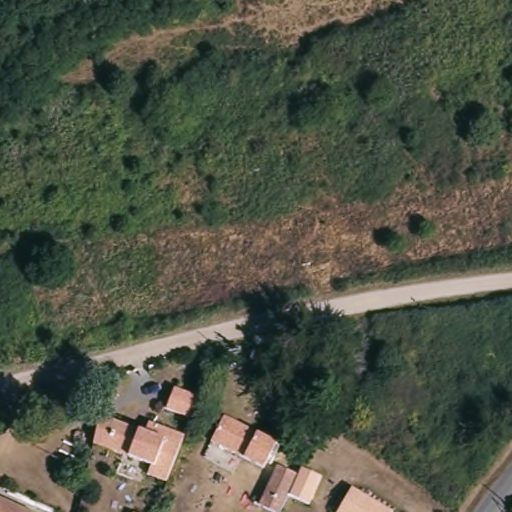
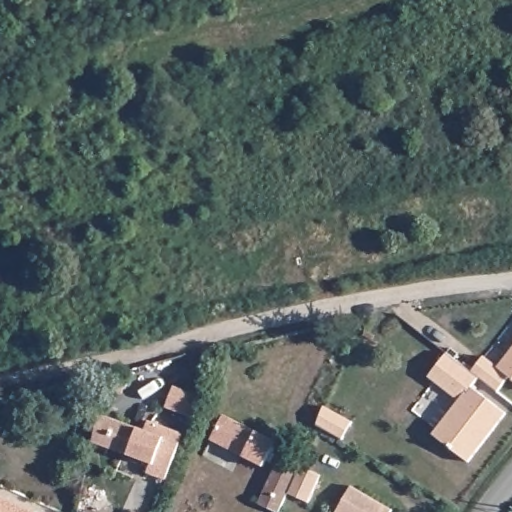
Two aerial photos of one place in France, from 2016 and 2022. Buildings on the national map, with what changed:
new [(471,371),(482,355),(497,366),(512,345),(512,377),(508,374),(497,390),(477,376),(471,385),(506,411),(469,460),(433,433),(458,399),(427,376),(446,352),(471,371)]
unchanged [(190,417),(165,407),(173,386),(198,396),(190,417)]
new [(323,407),(352,422),(342,440),(316,425),(323,407)]
unchanged [(223,410),(276,436),(263,462),(210,435),(223,410)]
unchanged [(146,475),(150,465),(105,447),(92,442),(94,431),(97,415),(112,420),(142,432),(147,422),(182,436),(165,482),(146,475)]
unchanged [(278,512),(276,512),(257,503),(276,463),(297,472),(278,512)]
unchanged [(392,512),(337,512),(351,486),(393,510),(392,512)]
unchanged [(33,512),(0,512),(0,497),(33,512)]

